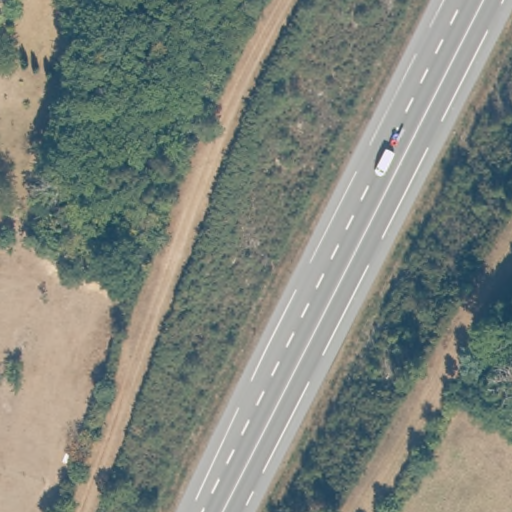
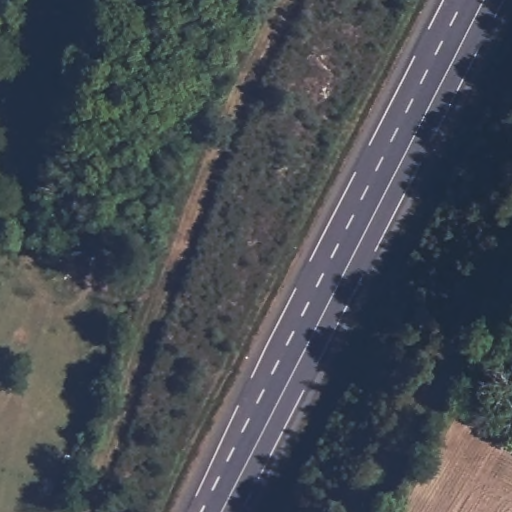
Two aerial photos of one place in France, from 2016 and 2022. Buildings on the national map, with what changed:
[]

